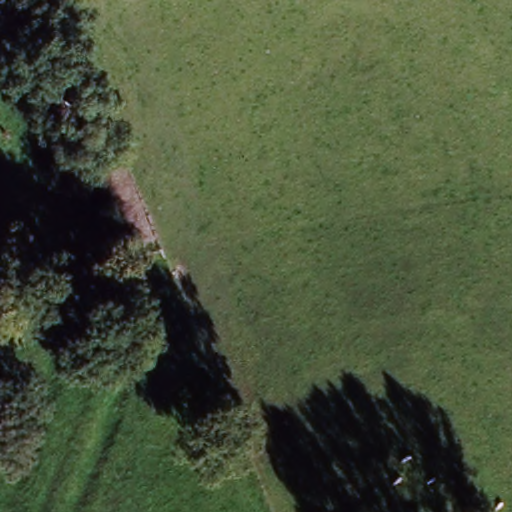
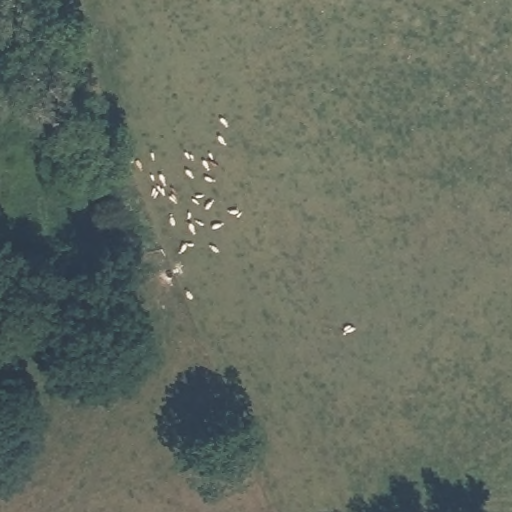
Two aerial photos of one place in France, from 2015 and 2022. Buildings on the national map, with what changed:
[]

